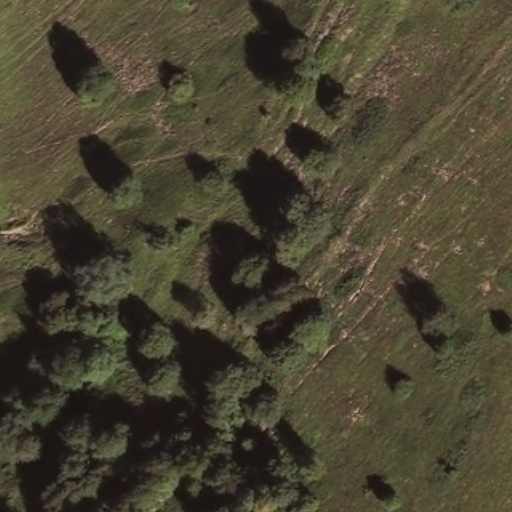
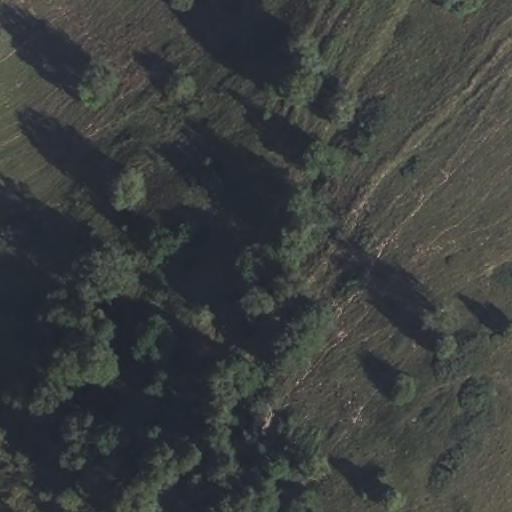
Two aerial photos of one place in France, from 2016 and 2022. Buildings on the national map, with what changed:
[]

